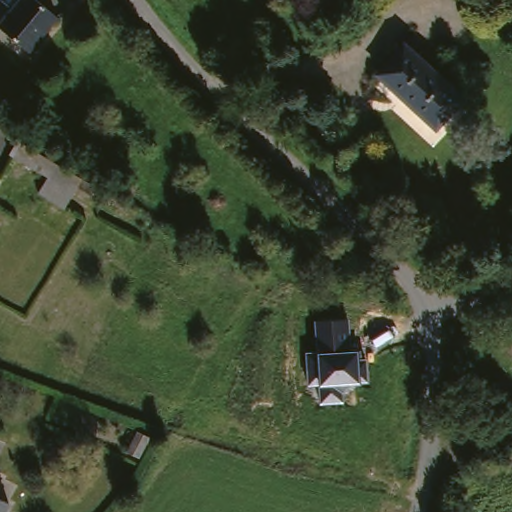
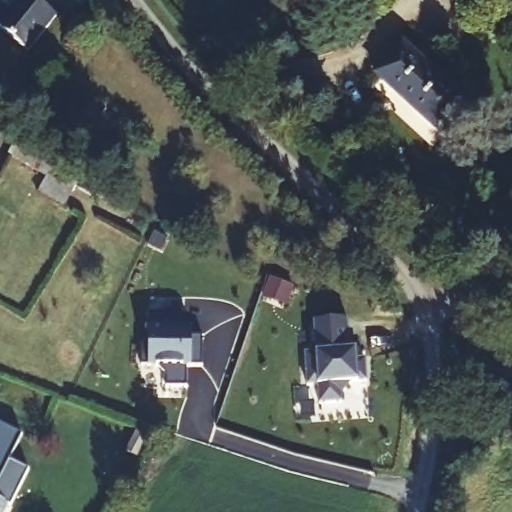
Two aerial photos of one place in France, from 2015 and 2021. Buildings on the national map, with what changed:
unchanged [(5,6),(10,0),(52,0),(69,12),(34,57),(1,34),(16,15),(5,6)]
unchanged [(412,45),(468,100),(441,129),(385,73),(412,45)]
unchanged [(49,184),(11,163),(22,146),(86,183),(76,199),(66,214),(40,200),(49,184)]
unchanged [(5,180),(0,188),(0,177),(5,180)]
new [(141,344),(150,345),(150,312),(185,313),(185,328),(193,328),(194,336),(202,337),(202,368),(187,368),(187,387),(167,388),(167,377),(158,367),(141,366),(141,344)]
unchanged [(311,323),(344,318),(346,334),(347,347),(355,347),(356,356),(364,355),(367,375),(351,377),(342,387),(343,396),(321,398),(318,381),(307,382),(303,353),(315,352),(311,323)]
unchanged [(122,452),(137,436),(147,445),(131,462),(122,452)]
new [(0,500),(0,483),(3,478),(0,476),(8,460),(29,471),(12,508),(8,506),(0,500)]
unchanged [(3,478),(0,483),(0,476),(3,478)]
unchanged [(8,506),(4,512),(0,512),(0,500),(8,506)]

